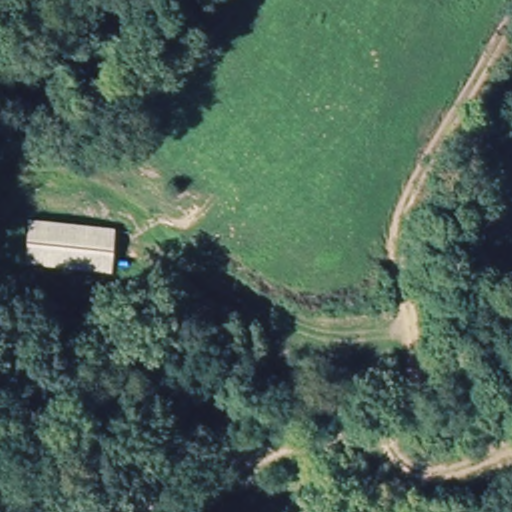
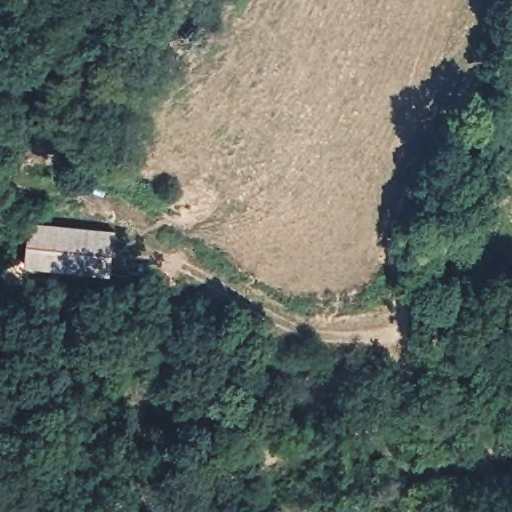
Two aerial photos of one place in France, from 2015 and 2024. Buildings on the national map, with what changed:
unchanged [(30,230),(115,233),(113,273),(28,270),(30,230)]

